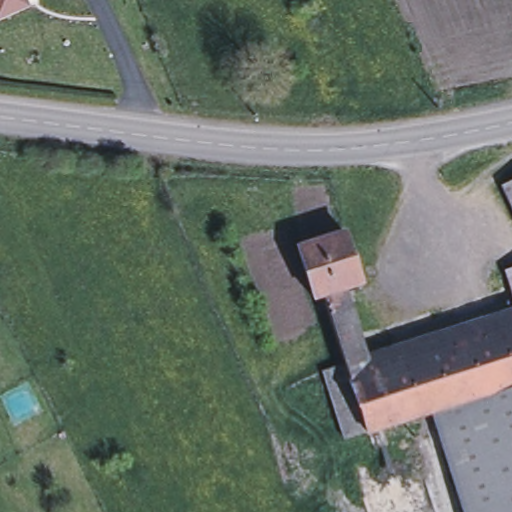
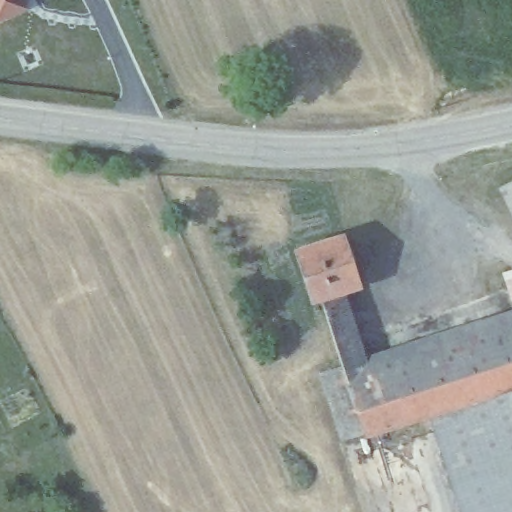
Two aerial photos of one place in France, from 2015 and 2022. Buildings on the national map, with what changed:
unchanged [(0,16),(0,0),(21,0),(24,6),(0,16)]
unchanged [(512,179),(512,216),(497,187),(512,179)]
unchanged [(340,289),(318,296),(309,298),(294,248),(341,233),(347,253),(354,251),(357,261),(350,263),(357,284),(340,289)]
unchanged [(512,300),(502,271),(512,268),(512,300)]
unchanged [(340,289),(361,359),(340,364),(318,296),(340,289)]
unchanged [(429,354),(512,326),(512,384),(425,413),(341,441),(318,372),(340,364),(361,359),(423,338),(429,354)]
unchanged [(512,462),(450,485),(425,413),(512,384),(512,462)]
unchanged [(512,512),(458,512),(450,485),(512,462),(512,512)]

